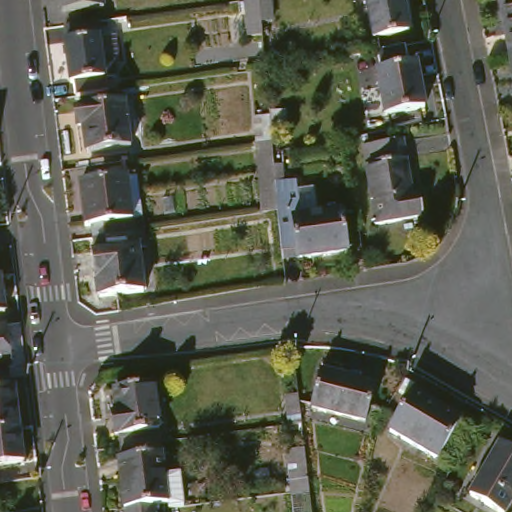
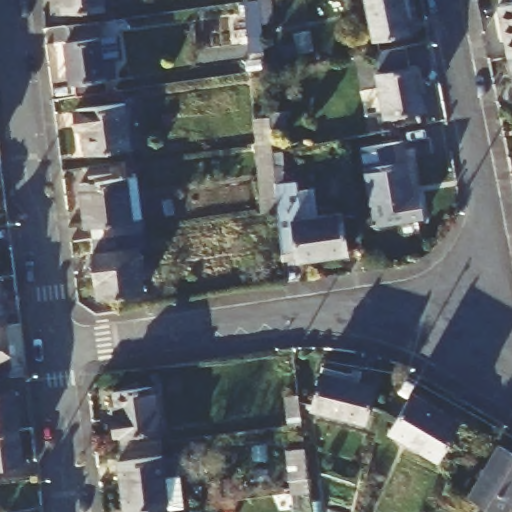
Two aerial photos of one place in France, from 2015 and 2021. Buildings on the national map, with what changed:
unchanged [(71,0),(112,0),(112,8),(72,11),(71,0)]
unchanged [(272,12),(260,13),(261,25),(246,27),(244,0),(271,0),(272,12)]
unchanged [(371,0),(408,0),(413,27),(377,34),(371,0)]
unchanged [(512,3),(512,31),(506,4),(512,3)]
unchanged [(69,43),(72,43),(70,26),(105,21),(107,38),(102,39),(105,61),(119,59),(121,76),(74,82),(69,43)]
unchanged [(381,67),(420,60),(428,103),(390,110),(381,67)]
unchanged [(83,110),(132,104),(138,147),(95,152),(91,127),(85,128),(83,110)]
unchanged [(282,212),(266,213),(260,143),(258,118),(274,117),(276,141),(276,151),(282,212)]
unchanged [(366,152),(406,145),(415,199),(423,198),(427,222),(379,230),(366,152)]
unchanged [(131,177),(136,219),(145,218),(147,229),(99,237),(97,224),(89,225),(84,183),(131,177)]
unchanged [(282,212),(304,209),(305,217),(345,211),(351,253),(301,260),(301,257),(286,259),(282,212)]
unchanged [(149,245),(141,246),(147,292),(101,298),(95,252),(100,251),(99,237),(147,229),(149,245)]
unchanged [(5,276),(11,326),(0,328),(0,277),(5,276)]
unchanged [(16,366),(10,367),(12,377),(0,379),(0,328),(11,326),(16,366)]
unchanged [(12,377),(14,389),(19,389),(24,429),(0,433),(0,379),(12,377)]
unchanged [(325,377),(378,390),(370,425),(316,413),(325,377)]
unchanged [(115,413),(119,412),(116,390),(157,385),(165,443),(126,447),(124,434),(117,435),(115,413)]
unchanged [(416,391),(465,419),(442,458),(393,430),(416,391)]
unchanged [(283,401),(297,399),(301,423),(287,425),(283,401)]
unchanged [(24,429),(29,462),(0,466),(0,433),(24,429)]
unchanged [(512,444),(512,512),(510,512),(478,494),(508,442),(512,444)]
unchanged [(127,507),(121,460),(125,459),(123,447),(126,447),(165,443),(172,502),(157,503),(133,507),(127,507)]
unchanged [(296,512),(286,456),(305,451),(315,512),(296,512)]
unchanged [(157,503),(158,512),(134,512),(133,507),(157,503)]

